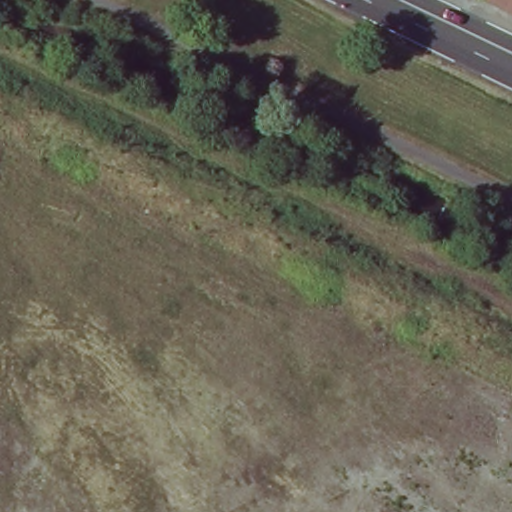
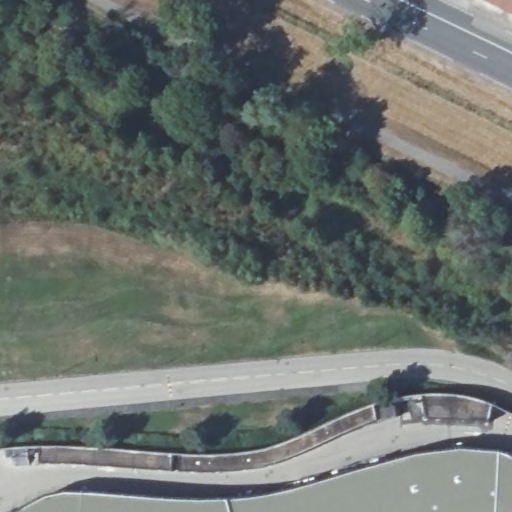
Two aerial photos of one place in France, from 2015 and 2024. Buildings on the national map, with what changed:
unchanged [(512,0),(512,13),(488,0),(512,0)]
new [(22,512),(51,497),(67,495),(111,497),(180,503),(237,503),(291,493),(387,466),(436,455),(465,451),(502,454),(512,458),(512,512),(22,512)]

